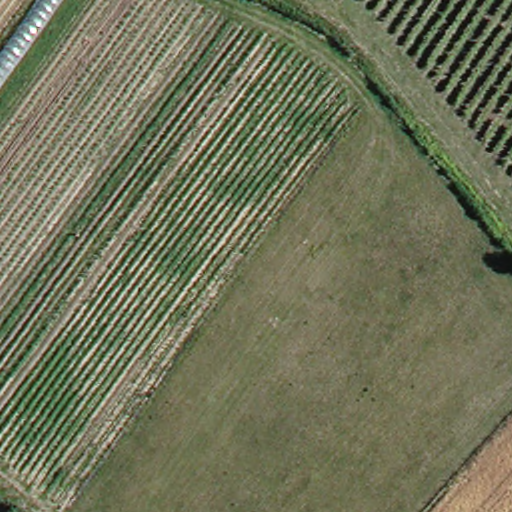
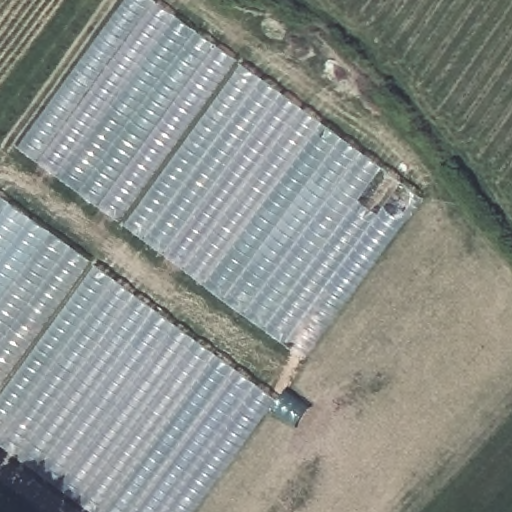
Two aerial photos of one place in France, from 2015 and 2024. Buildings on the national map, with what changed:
new [(18,149),(118,0),(154,0),(422,197),(301,357),(18,149)]
new [(194,512),(86,512),(0,451),(0,198),(272,399),(194,512)]

